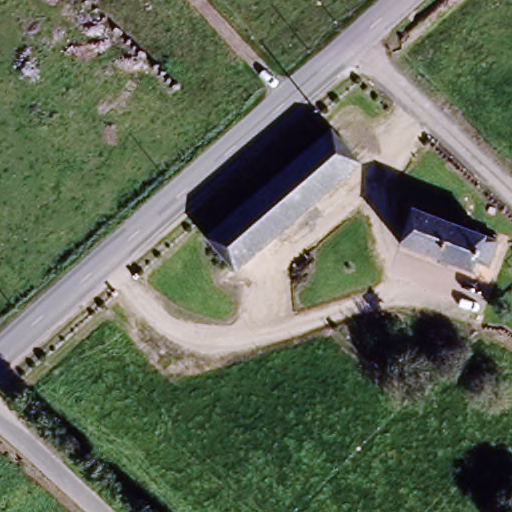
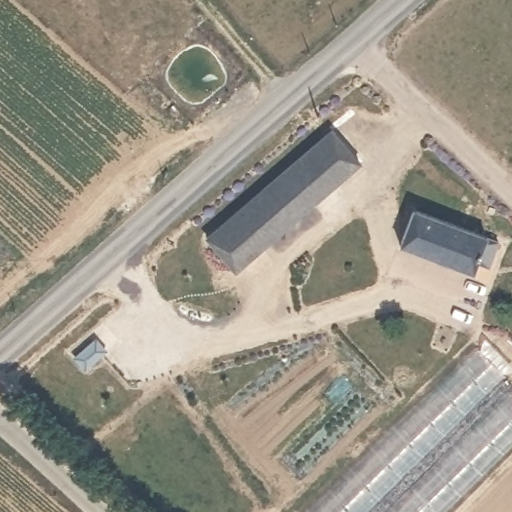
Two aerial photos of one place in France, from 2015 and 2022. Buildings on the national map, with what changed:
unchanged [(331,122),(362,158),(235,267),(204,231),(331,122)]
unchanged [(412,202),(499,236),(488,263),(476,258),(472,269),(398,240),(412,202)]
new [(512,369),(512,371),(366,512),(306,512),(484,338),(512,369)]
new [(447,512),(385,512),(512,388),(512,448),(447,512)]

